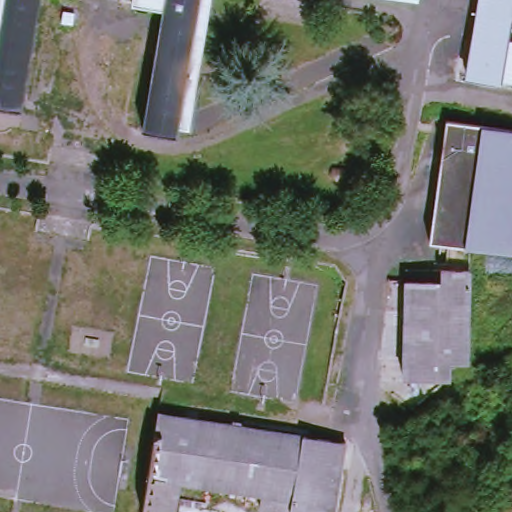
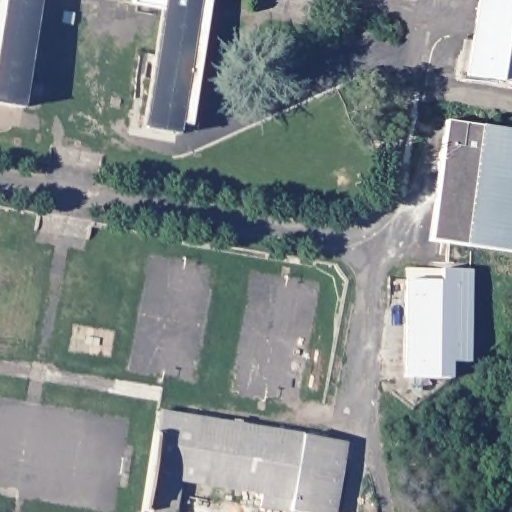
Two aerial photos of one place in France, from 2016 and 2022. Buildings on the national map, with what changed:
unchanged [(0,48),(8,0),(44,0),(22,119),(0,115),(0,48)]
unchanged [(44,0),(73,0),(72,5),(44,0)]
unchanged [(169,21),(137,15),(139,0),(207,0),(181,146),(147,140),(169,21)]
unchanged [(484,0),(512,0),(512,79),(472,73),(484,0)]
unchanged [(452,122),(484,126),(512,130),(512,254),(470,248),(432,242),(452,122)]
unchanged [(432,265),(435,281),(445,281),(446,269),(475,270),(473,363),(455,362),(455,381),(408,380),(411,280),(411,267),(432,265)]
unchanged [(269,508),(270,496),(184,484),(181,512),(157,512),(149,510),(160,439),(164,410),(309,434),(349,447),(338,512),(294,512),(269,508)]

